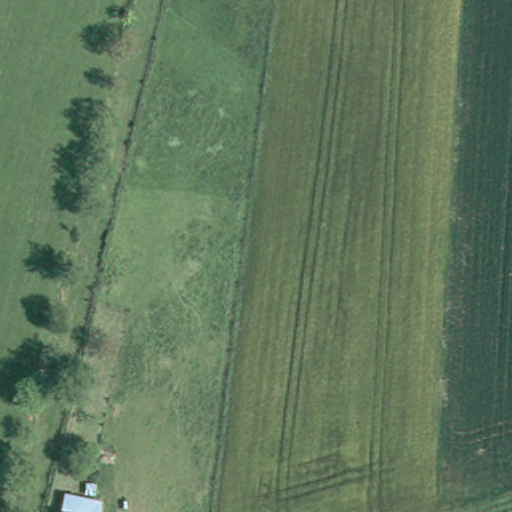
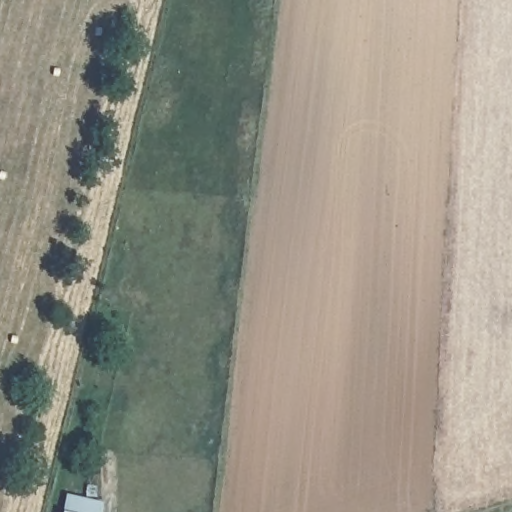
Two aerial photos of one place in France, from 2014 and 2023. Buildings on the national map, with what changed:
unchanged [(109,505),(107,512),(65,512),(67,499),(109,505)]

